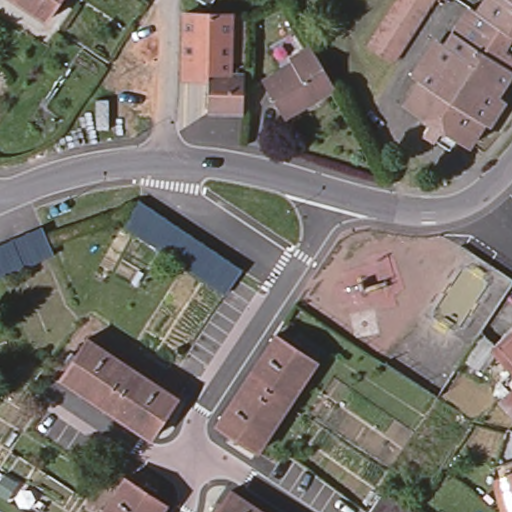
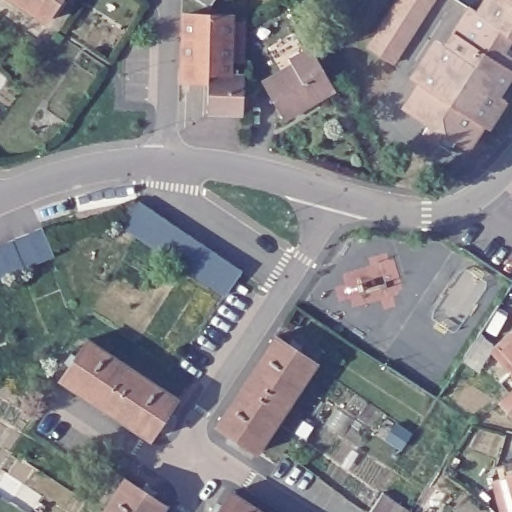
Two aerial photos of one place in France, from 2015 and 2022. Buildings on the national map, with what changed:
unchanged [(58,0),(45,20),(14,0),(58,0)]
unchanged [(197,0),(214,0),(210,8),(197,0)]
unchanged [(399,0),(434,0),(395,61),(370,45),(399,0)]
unchanged [(479,10),(484,0),(512,0),(512,32),(479,10)]
unchanged [(507,64),(512,68),(512,71),(498,93),(507,98),(490,124),(487,121),(485,122),(470,145),(407,104),(422,80),(472,5),(479,10),(512,32),(512,55),(507,64)]
unchanged [(182,15),(208,16),(229,17),(228,64),(217,64),(217,73),(207,73),(206,80),(179,79),(182,15)]
unchanged [(290,64),(288,59),(308,48),(332,89),(280,119),(260,81),(290,64)]
unchanged [(205,113),(206,80),(207,73),(217,73),(242,74),(240,114),(205,113)]
unchanged [(121,227),(138,202),(242,272),(225,296),(121,227)]
unchanged [(52,249),(54,255),(0,278),(0,246),(42,228),(52,249)]
unchanged [(510,409),(498,398),(507,389),(495,377),(506,366),(492,352),(487,346),(512,321),(512,407),(510,409)]
unchanged [(229,441),(232,436),(218,427),(276,337),(315,363),(256,453),(240,441),(237,446),(229,441)]
unchanged [(164,433),(157,429),(150,440),(60,380),(87,339),(162,391),(175,399),(165,417),(170,419),(164,433)]
unchanged [(504,473),(512,471),(512,504),(504,473)]
unchanged [(141,491),(145,484),(157,493),(154,499),(164,506),(160,512),(103,512),(125,480),(141,491)]
unchanged [(382,492),(412,512),(369,512),(382,492)]
unchanged [(215,503),(221,506),(230,493),(260,512),(210,512),(215,503)]

